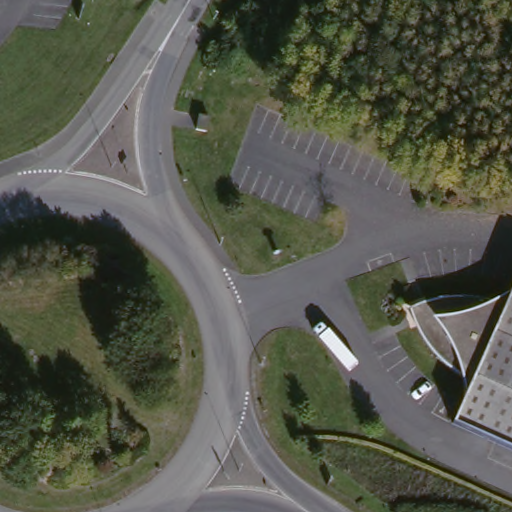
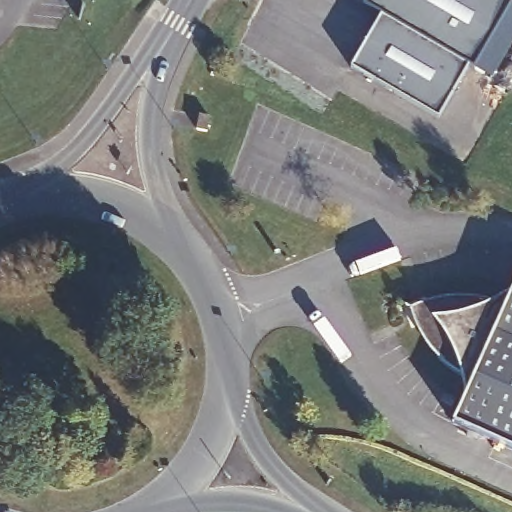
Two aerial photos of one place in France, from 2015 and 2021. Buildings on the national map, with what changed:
new [(479,61),(478,62),(473,59),(384,9),(368,0),(512,0),(512,3),(479,61)]
new [(512,3),(512,43),(496,71),(479,61),(512,3)]
new [(384,9),(473,59),(442,112),(354,62),(384,9)]
unchanged [(466,375),(456,369),(447,361),(442,356),(435,347),(428,337),(422,327),(418,317),(415,308),(428,302),(440,299),(452,296),(464,295),(475,296),(488,297),(500,300),(512,294),(512,446),(458,422),(470,393),(466,375)]

